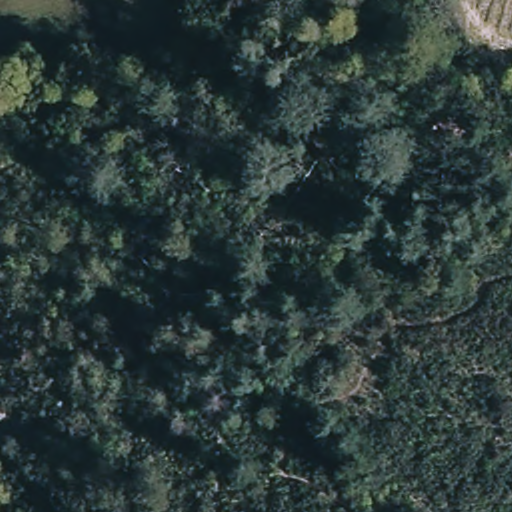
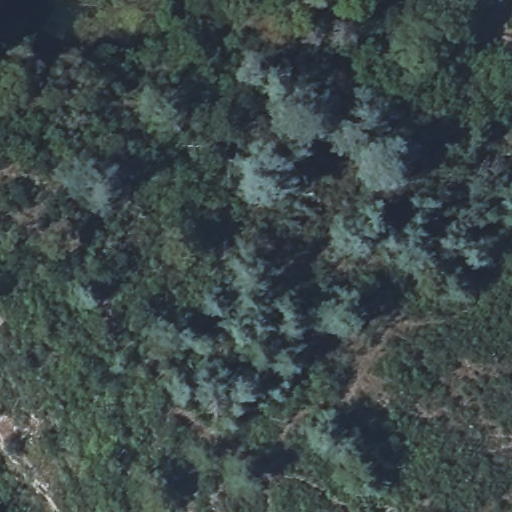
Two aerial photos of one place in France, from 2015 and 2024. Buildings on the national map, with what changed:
unchanged [(6,102),(0,109),(0,96),(6,102)]

